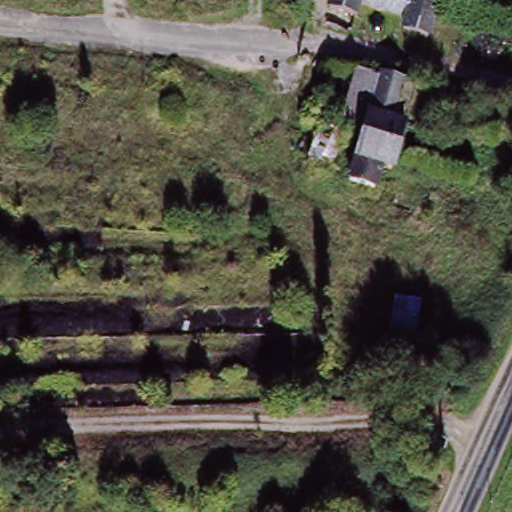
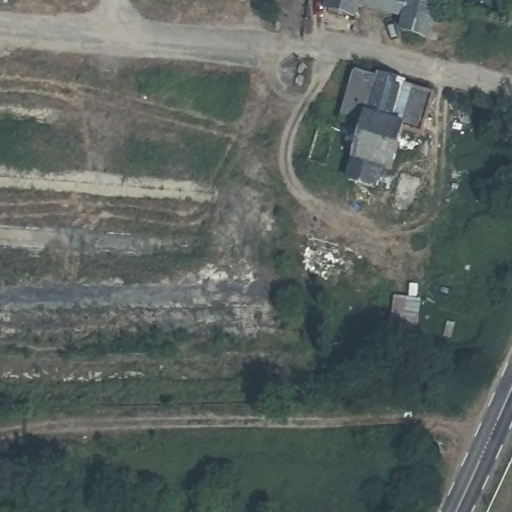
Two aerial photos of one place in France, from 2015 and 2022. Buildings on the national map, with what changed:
unchanged [(440,5),(430,39),(427,40),(400,33),(399,30),(402,19),(360,7),(356,21),(324,11),(327,0),(422,0),(440,5)]
unchanged [(377,78),(378,75),(408,83),(406,87),(434,94),(422,135),(405,130),(392,173),(381,170),(375,190),(346,182),(361,128),(340,122),(354,72),(377,78)]
unchanged [(305,160),(316,124),(339,130),(328,166),(305,160)]
unchanged [(416,332),(438,335),(435,357),(388,350),(396,296),(421,299),(416,332)]

